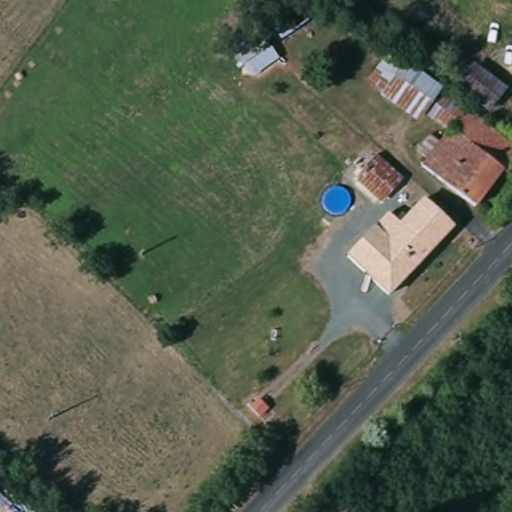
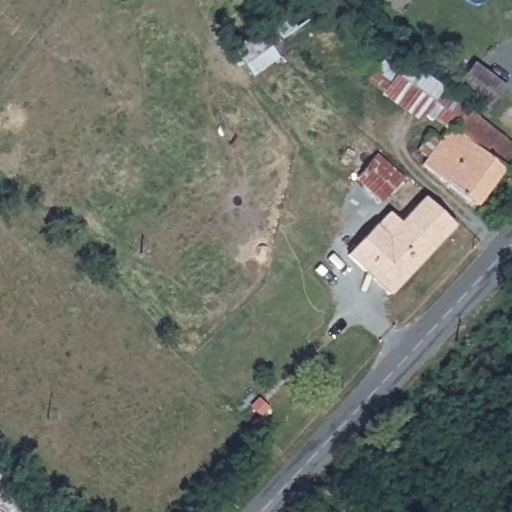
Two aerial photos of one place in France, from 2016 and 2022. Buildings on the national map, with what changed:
unchanged [(268,44),(276,56),(250,72),(231,48),(292,4),(303,20),(268,44)]
unchanged [(447,129),(424,114),(419,123),(366,84),(385,56),(400,65),(405,59),(442,86),(440,90),(463,111),(447,129)]
unchanged [(509,87),(491,114),(451,85),(469,60),(509,87)]
unchanged [(419,162),(408,151),(421,138),(431,147),(439,139),(463,111),(512,154),(512,158),(497,174),(495,172),(462,210),(414,165),(419,162)]
unchanged [(351,175),(355,170),(337,154),(341,148),(336,144),(342,138),(371,164),(377,160),(394,176),(375,196),(351,175)]
unchanged [(386,291),(345,253),(382,213),(391,221),(416,196),(449,227),(386,291)]

